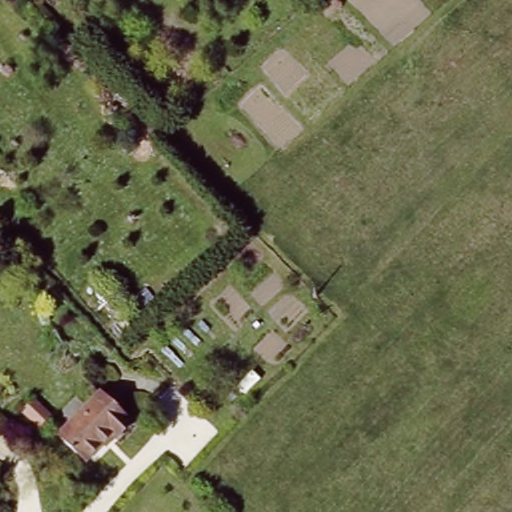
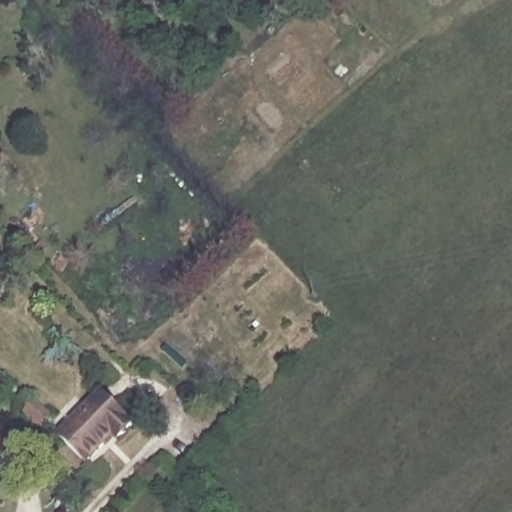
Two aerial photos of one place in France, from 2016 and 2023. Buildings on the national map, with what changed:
unchanged [(102,421),(108,427),(80,455),(55,429),(98,387),(117,406),(102,421)]

